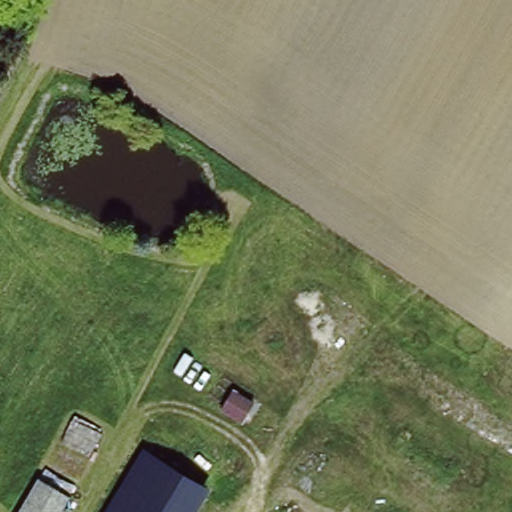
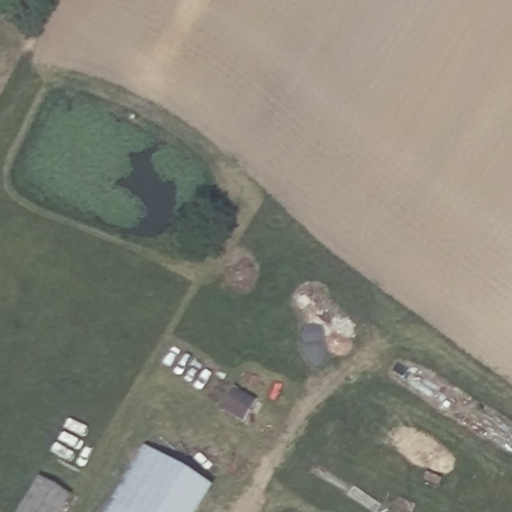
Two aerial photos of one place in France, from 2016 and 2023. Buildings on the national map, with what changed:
unchanged [(212,492),(201,512),(108,512),(144,452),(212,492)]
unchanged [(71,496),(61,512),(18,512),(38,478),(71,496)]

